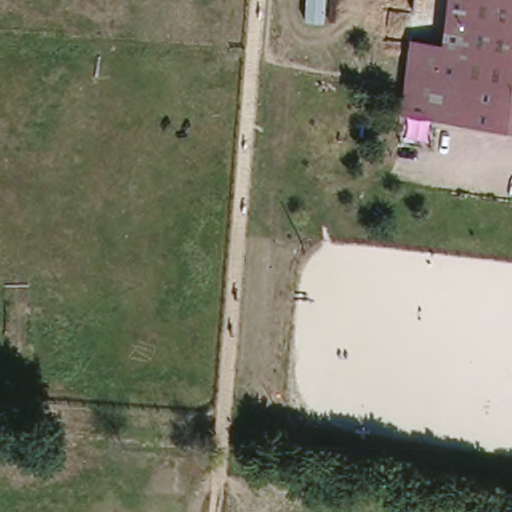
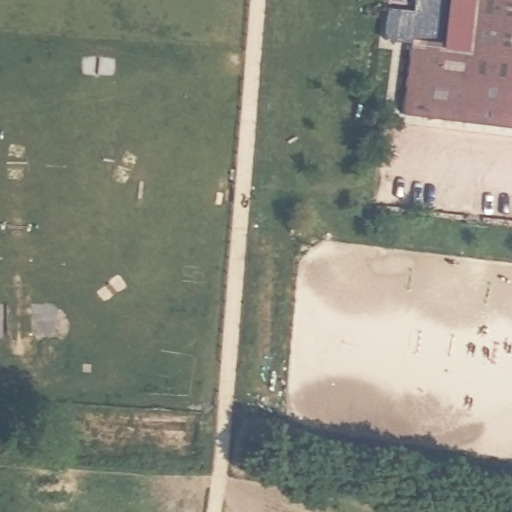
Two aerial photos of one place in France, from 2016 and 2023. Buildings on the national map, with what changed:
unchanged [(512,124),(401,109),(413,0),(512,0),(512,124)]

